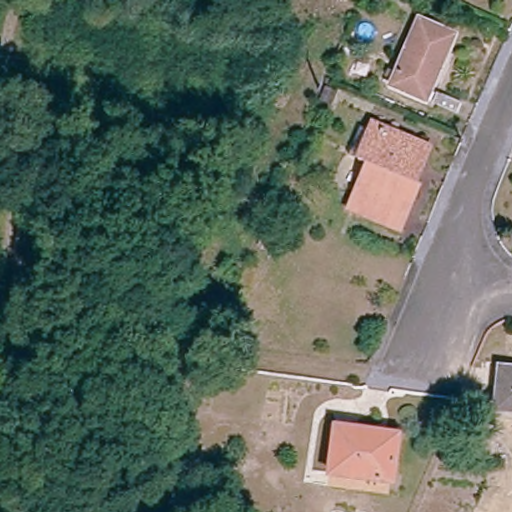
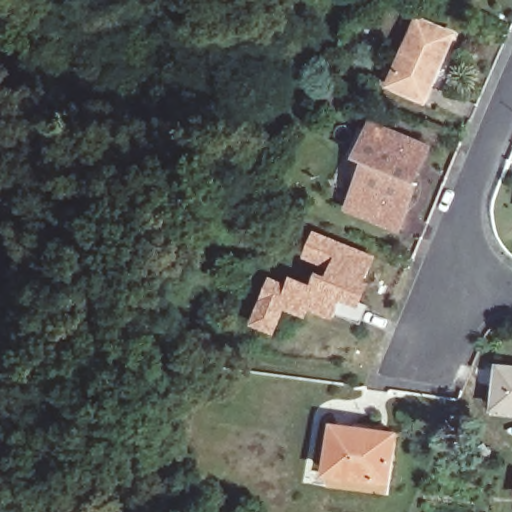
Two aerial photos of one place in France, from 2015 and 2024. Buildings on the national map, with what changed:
unchanged [(418,21),(453,36),(425,102),(390,88),(418,21)]
unchanged [(406,215),(399,231),(355,211),(349,209),(369,167),(359,162),(374,130),(419,151),(427,155),(418,175),(413,186),(418,189),(406,215)]
new [(364,297),(360,306),(367,310),(360,325),(336,315),(334,320),(309,310),(306,317),(284,308),(274,333),(255,325),(272,284),(291,291),(295,282),(316,291),(321,278),(331,283),(336,270),(308,258),(317,236),(375,261),(363,288),(360,295),(364,297)]
unchanged [(504,365),(512,366),(512,409),(498,406),(504,365)]
unchanged [(331,481),(332,432),(352,432),(396,432),(396,443),(394,483),(331,481)]

